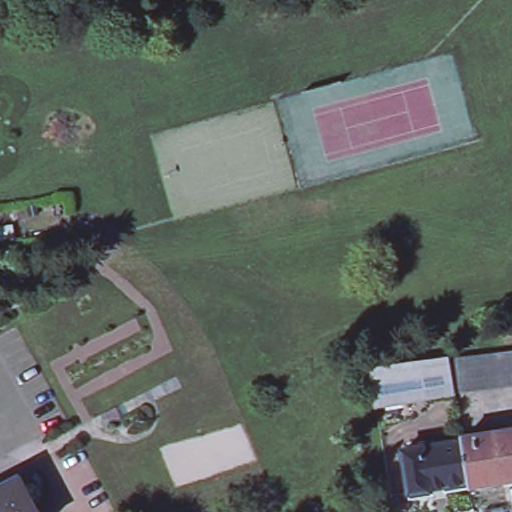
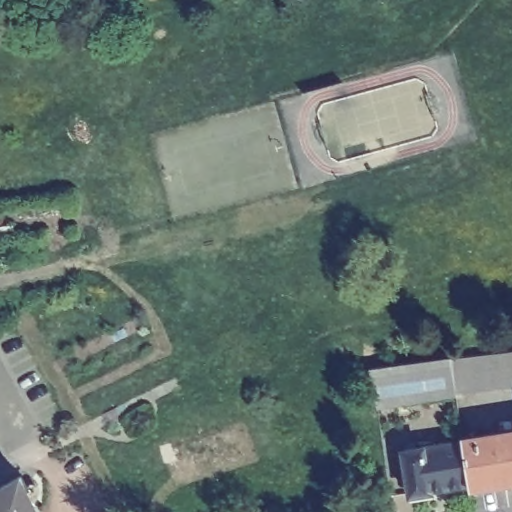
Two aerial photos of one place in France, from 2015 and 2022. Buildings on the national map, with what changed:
unchanged [(377,403),(372,367),(512,349),(512,387),(377,403)]
unchanged [(410,500),(400,447),(512,429),(512,483),(410,500)]
unchanged [(49,512),(0,512),(0,485),(25,472),(49,512)]

